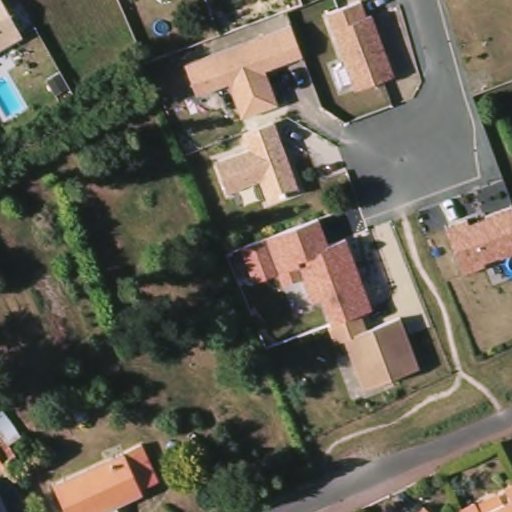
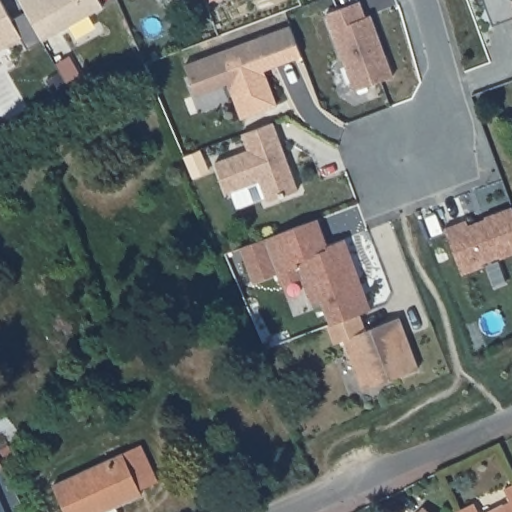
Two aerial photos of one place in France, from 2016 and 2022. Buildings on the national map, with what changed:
new [(104,6),(28,47),(19,36),(10,20),(26,10),(20,0),(100,0),(104,6)]
new [(512,16),(492,24),(483,0),(512,0),(512,16)]
unchanged [(327,14),(361,1),(367,16),(372,15),(393,75),(352,90),(327,14)]
unchanged [(19,36),(0,48),(0,3),(19,36)]
unchanged [(228,82),(197,91),(186,64),(292,26),(301,56),(266,70),(277,106),(242,117),(228,82)]
unchanged [(216,160),(247,149),(243,132),(275,121),(298,190),(268,201),(261,182),(228,193),(216,160)]
unchanged [(467,219),(469,223),(512,207),(512,254),(463,273),(445,226),(467,219)]
unchanged [(344,339),(336,342),(330,323),(320,296),(310,301),(301,276),(282,283),(277,272),(252,280),(240,249),(319,219),(328,244),(344,239),(373,310),(359,315),(365,329),(401,316),(419,370),(364,389),(344,339)]
unchanged [(84,401),(90,417),(77,422),(71,406),(84,401)]
unchanged [(19,435),(7,444),(19,461),(7,469),(0,459),(0,412),(2,410),(19,435)]
unchanged [(163,481),(145,489),(147,493),(121,505),(124,512),(72,512),(59,484),(146,444),(163,481)]
unchanged [(7,469),(14,490),(18,489),(28,512),(0,512),(0,459),(7,469)]
unchanged [(512,488),(512,494),(510,489),(512,488)]
unchanged [(484,512),(462,512),(462,511),(480,503),(484,512)]
unchanged [(512,512),(493,512),(512,503),(512,512)]
unchanged [(434,512),(423,512),(429,506),(434,512)]

